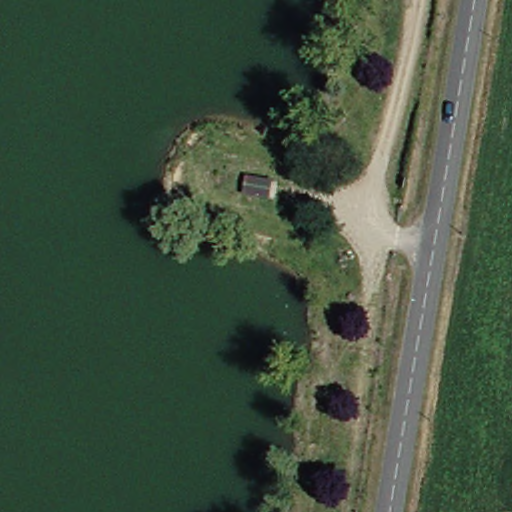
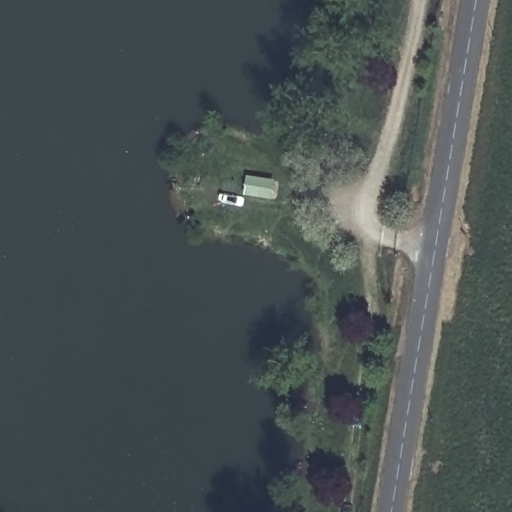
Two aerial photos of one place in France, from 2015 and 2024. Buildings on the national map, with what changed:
unchanged [(272,184),(269,200),(248,195),(250,181),(272,184)]

